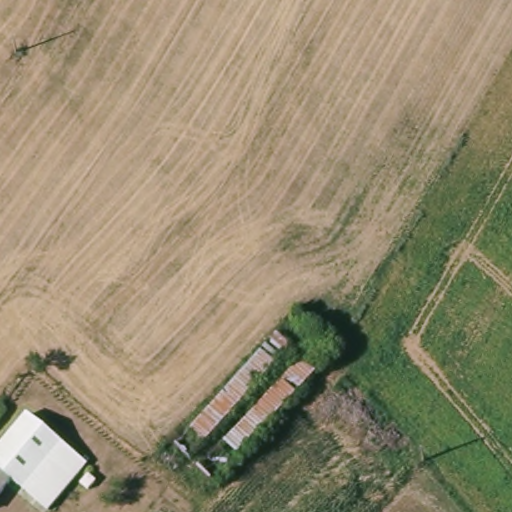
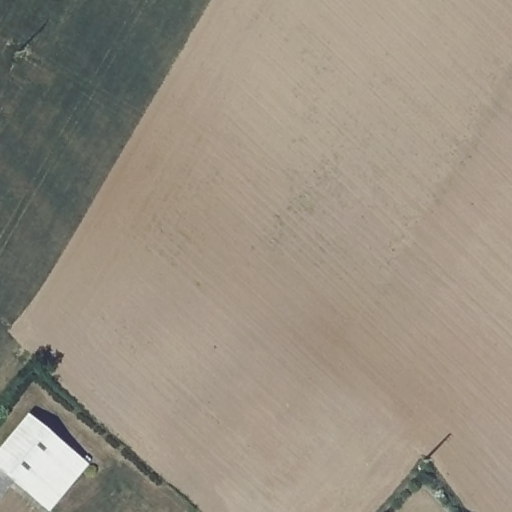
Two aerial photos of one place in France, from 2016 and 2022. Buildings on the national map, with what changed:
unchanged [(176,447),(272,337),(288,348),(190,458),(176,447)]
unchanged [(214,486),(196,475),(300,361),(313,373),(214,486)]
unchanged [(33,420),(99,477),(67,512),(52,512),(14,478),(0,466),(0,454),(33,420)]
unchanged [(14,478),(0,493),(0,466),(14,478)]

